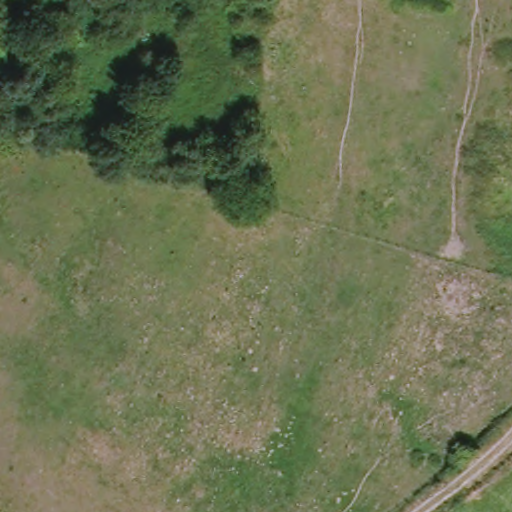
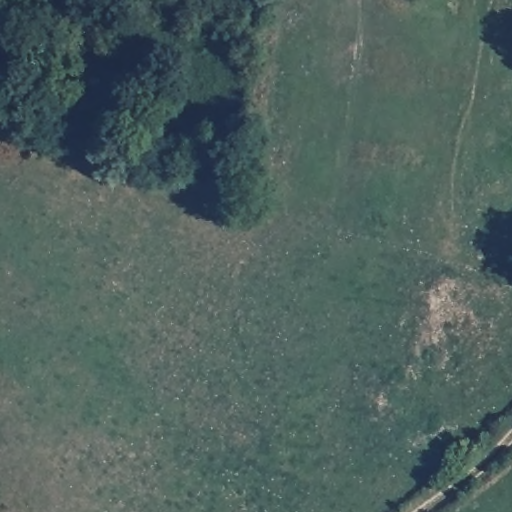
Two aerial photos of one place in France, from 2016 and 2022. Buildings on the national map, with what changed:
[]

